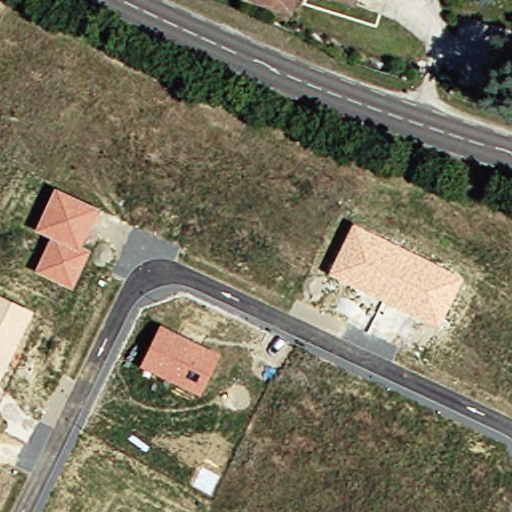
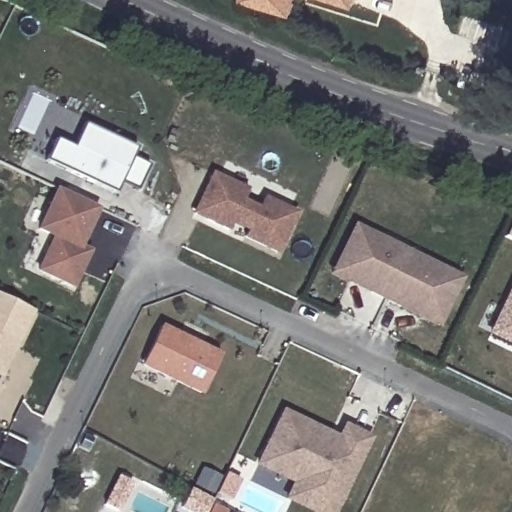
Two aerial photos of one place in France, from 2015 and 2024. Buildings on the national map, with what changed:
unchanged [(254,0),(303,0),(298,16),(254,0)]
unchanged [(339,0),(359,0),(357,5),(339,0)]
new [(51,138),(69,145),(80,121),(133,146),(128,157),(145,164),(133,190),(116,182),(110,194),(40,160),(51,138)]
new [(278,254),(242,239),(246,233),(230,225),(227,232),(189,214),(211,171),(249,189),(244,200),(258,207),(263,197),(297,210),(278,254)]
unchanged [(73,288),(35,273),(49,237),(34,230),(55,189),(99,209),(80,247),(90,253),(73,288)]
unchanged [(439,327),(328,274),(352,223),(463,279),(439,327)]
new [(498,307),(512,278),(512,343),(486,331),(498,307)]
unchanged [(0,294),(34,312),(0,379),(0,294)]
unchanged [(199,395),(139,368),(160,324),(221,354),(199,395)]
unchanged [(0,396),(0,388),(3,389),(0,396)]
new [(283,501),(291,484),(255,466),(281,409),(337,436),(343,423),(372,437),(336,512),(307,512),(283,501)]

